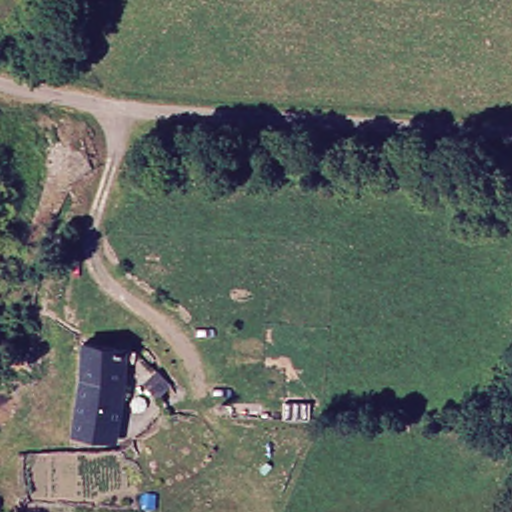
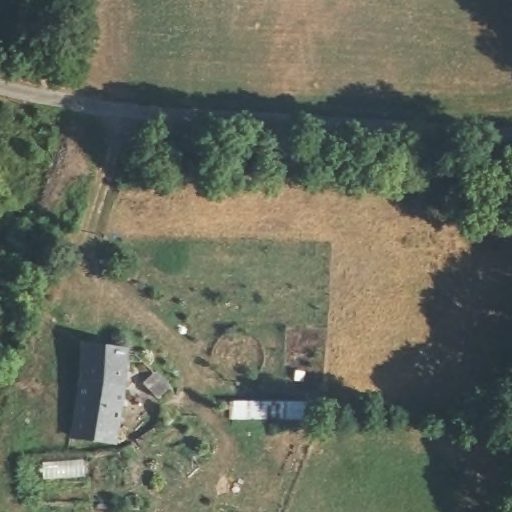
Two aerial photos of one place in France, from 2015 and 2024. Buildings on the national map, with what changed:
unchanged [(143,358),(124,364),(115,442),(73,436),(84,348),(143,358)]
unchanged [(163,403),(151,386),(166,378),(175,395),(163,403)]

